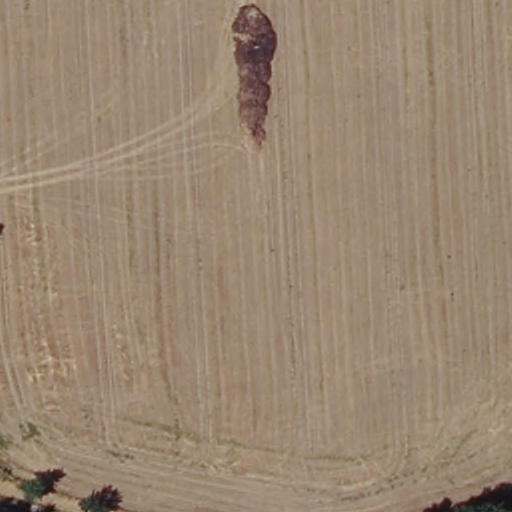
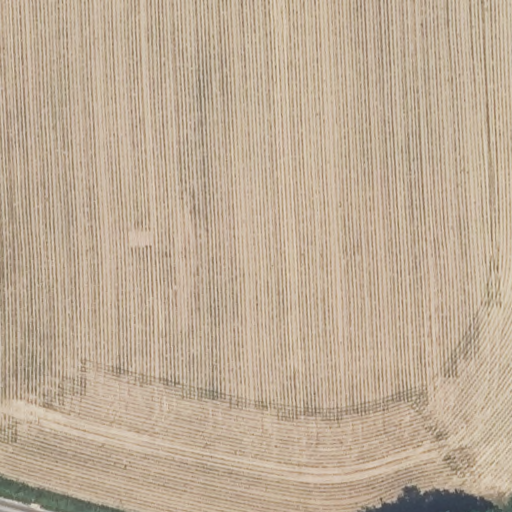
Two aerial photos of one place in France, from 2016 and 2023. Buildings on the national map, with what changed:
[]

